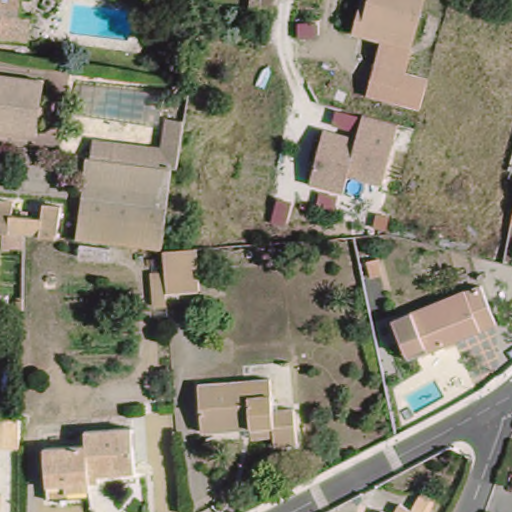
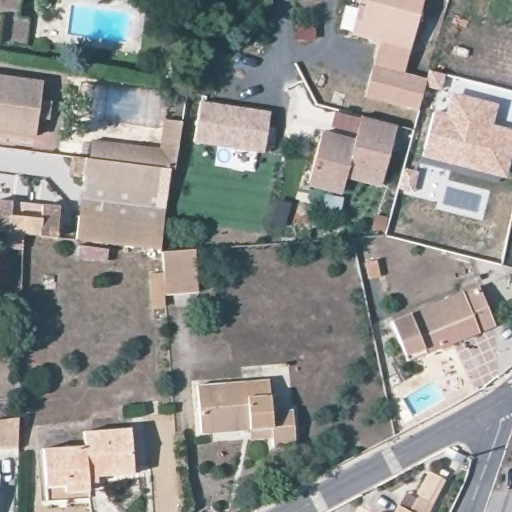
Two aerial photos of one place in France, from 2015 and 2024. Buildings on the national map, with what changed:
unchanged [(0,42),(0,0),(20,0),(19,18),(31,19),(28,47),(0,42)]
unchanged [(360,6),(366,8),(368,0),(424,0),(411,49),(367,38),(351,34),(360,6)]
unchanged [(364,94),(373,67),(428,81),(426,114),(364,94)]
unchanged [(0,132),(0,76),(3,76),(44,82),(42,96),(42,102),(50,103),(48,119),(39,118),(38,121),(36,137),(0,132)]
new [(449,115),(453,96),(493,105),(488,124),(512,130),(512,148),(505,174),(423,153),(434,112),(449,115)]
new [(204,98),(274,112),(266,153),(196,138),(204,98)]
unchanged [(319,132),(352,139),(359,117),(395,126),(381,184),(347,177),(342,192),(307,186),(319,132)]
unchanged [(70,175),(72,156),(87,158),(91,141),(157,149),(162,119),(177,122),(169,169),(160,251),(74,241),(84,178),(70,175)]
unchanged [(38,206),(56,207),(53,238),(20,235),(0,233),(0,201),(9,202),(8,215),(36,219),(38,206)]
unchanged [(512,221),(512,227),(511,226),(512,221)]
unchanged [(153,309),(150,274),(164,274),(163,251),(196,249),(199,292),(166,295),(166,308),(153,309)]
unchanged [(2,254),(0,267),(0,254),(2,254)]
unchanged [(379,261),(382,277),(370,278),(367,262),(379,261)]
unchanged [(402,344),(393,322),(463,293),(481,287),(496,325),(456,342),(458,349),(446,353),(443,347),(427,353),(408,361),(402,344)]
unchanged [(208,434),(203,385),(275,379),(278,412),(299,409),(302,445),(280,449),(278,437),(256,440),(256,430),(208,434)]
unchanged [(20,418),(19,450),(0,449),(0,420),(20,418)]
unchanged [(43,448),(86,445),(85,431),(131,428),(134,465),(134,475),(99,477),(99,483),(90,483),(90,489),(91,497),(48,501),(46,486),(43,448)]

